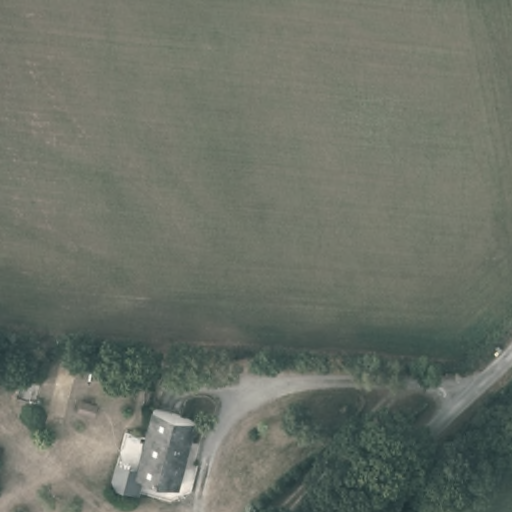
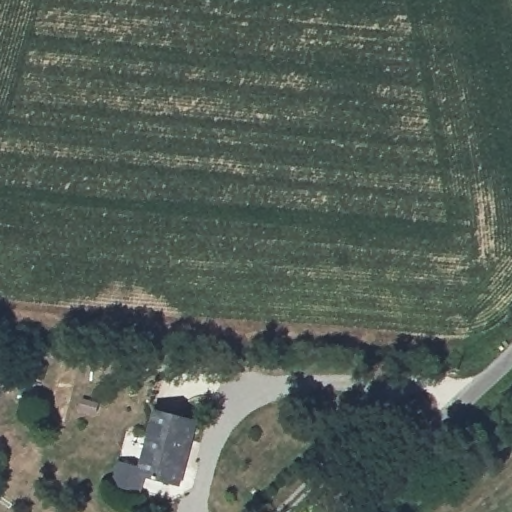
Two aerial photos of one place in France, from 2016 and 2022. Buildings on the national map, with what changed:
unchanged [(184,460),(182,460),(174,487),(138,477),(156,412),(195,421),(184,460)]

